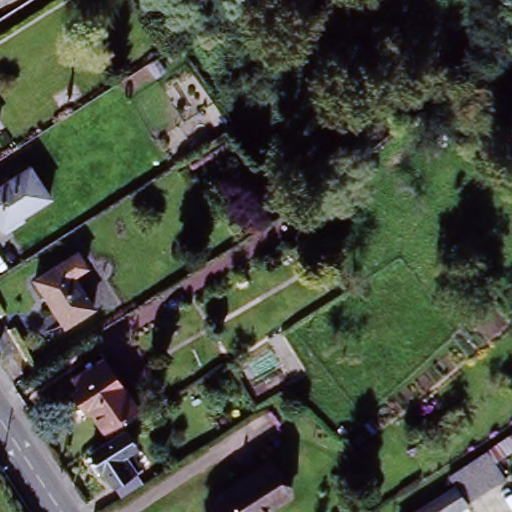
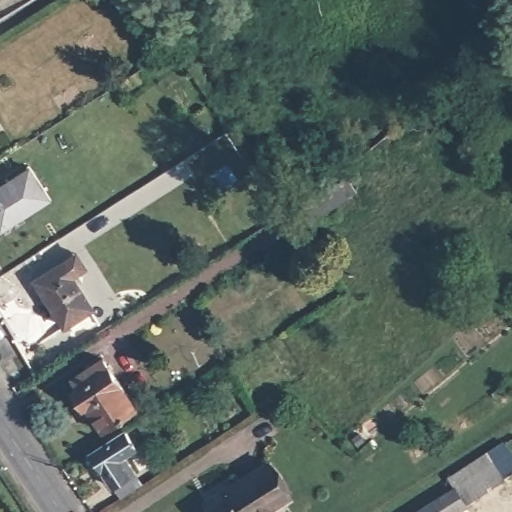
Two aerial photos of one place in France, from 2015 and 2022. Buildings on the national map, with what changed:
unchanged [(5,227),(0,220),(0,187),(30,166),(50,196),(5,227)]
unchanged [(286,220),(348,179),(356,191),(295,233),(286,220)]
unchanged [(34,281),(60,263),(75,253),(84,266),(69,277),(89,308),(63,326),(34,281)]
unchanged [(144,402),(144,403),(112,425),(95,402),(92,404),(79,385),(85,381),(78,372),(92,363),(98,372),(115,360),(144,402)]
unchanged [(141,448),(123,459),(136,476),(118,488),(96,454),(129,432),(141,448)]
unchanged [(449,477),(512,437),(512,449),(493,461),(504,479),(454,512),(420,512),(456,488),(449,477)]
unchanged [(269,465),(291,496),(267,512),(213,512),(208,505),(269,465)]

